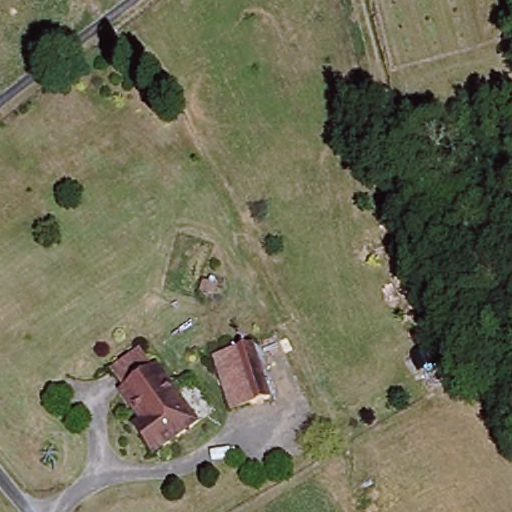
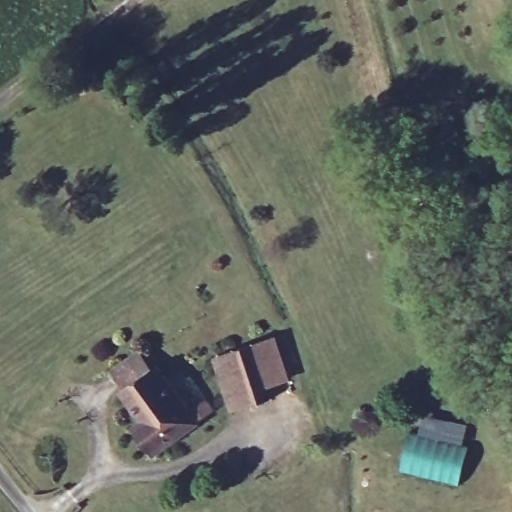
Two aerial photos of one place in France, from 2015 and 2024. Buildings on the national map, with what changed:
unchanged [(225,412),(213,357),(255,348),(267,402),(225,412)]
unchanged [(162,369),(199,426),(154,462),(134,429),(139,423),(119,395),(125,391),(115,377),(142,358),(152,375),(162,369)]
new [(405,468),(412,436),(420,438),(426,416),(466,425),(462,443),(468,445),(460,482),(405,468)]

